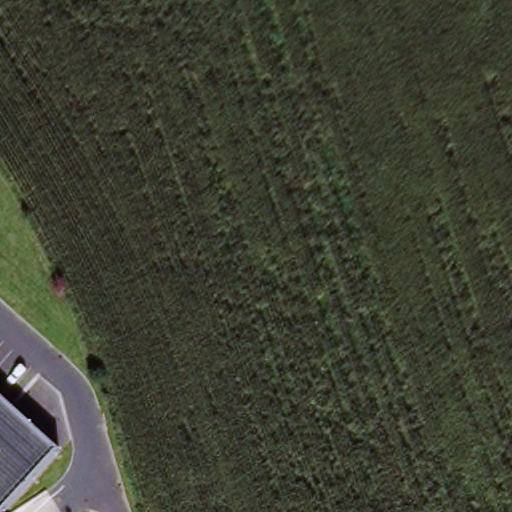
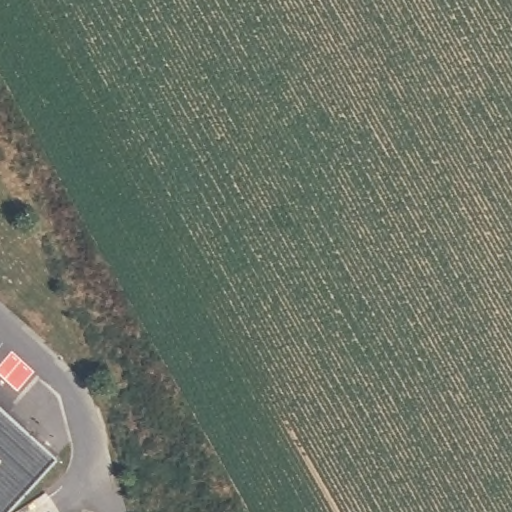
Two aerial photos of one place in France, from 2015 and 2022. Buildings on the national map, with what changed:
unchanged [(59,453),(5,512),(0,512),(0,399),(59,453)]

